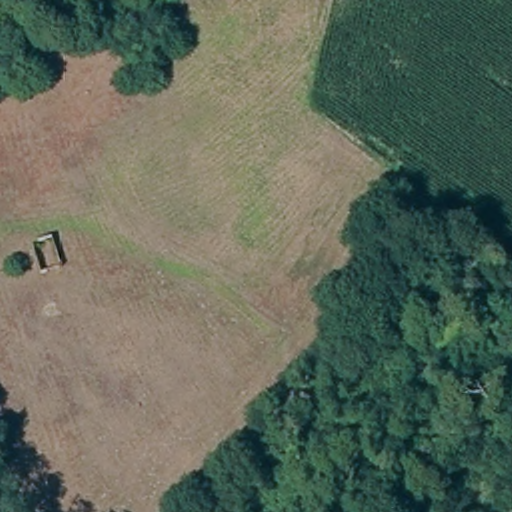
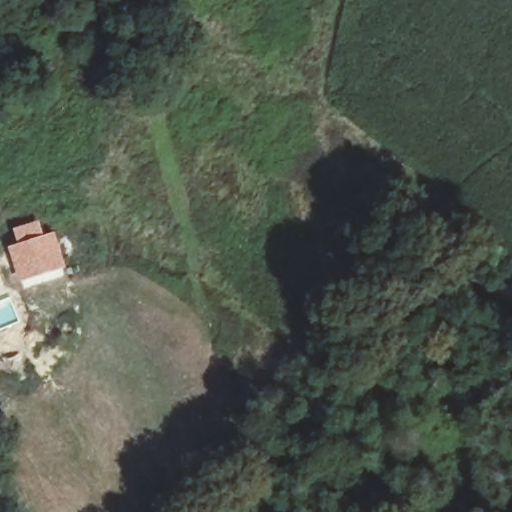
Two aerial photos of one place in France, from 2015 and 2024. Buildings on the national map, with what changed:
new [(16,243),(12,228),(39,220),(44,234),(55,231),(66,268),(20,283),(7,246),(16,243)]

